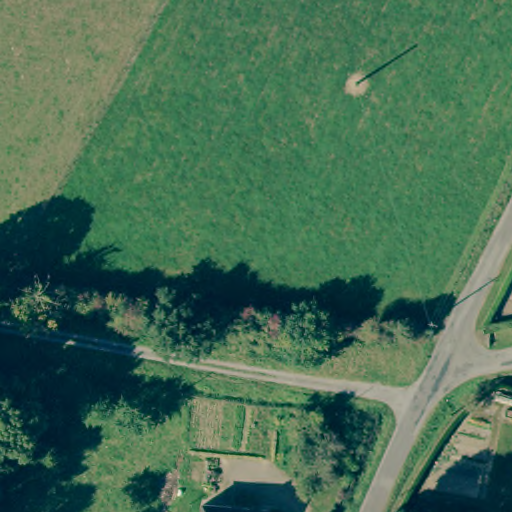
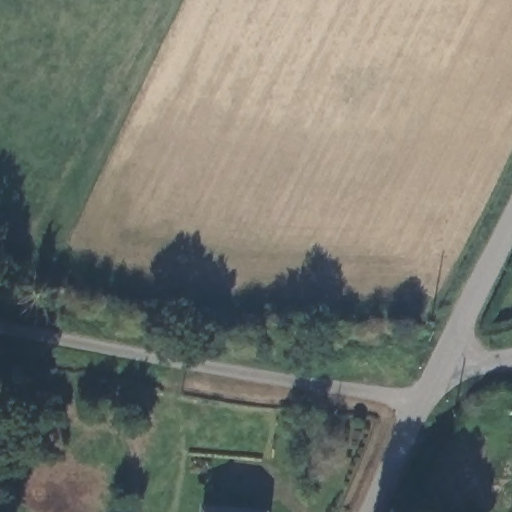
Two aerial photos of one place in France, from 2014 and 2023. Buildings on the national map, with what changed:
unchanged [(273,511),(272,512),(207,512),(208,505),(273,511)]

